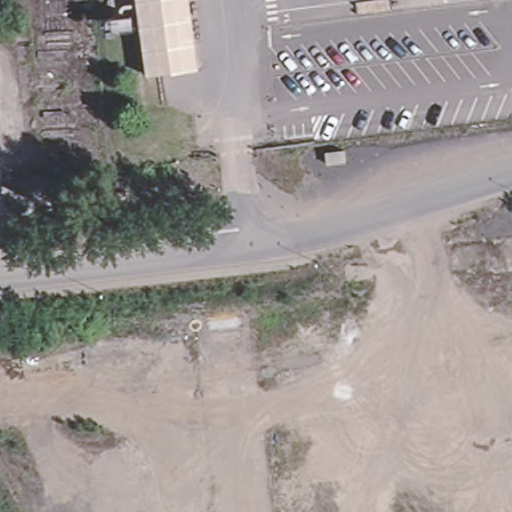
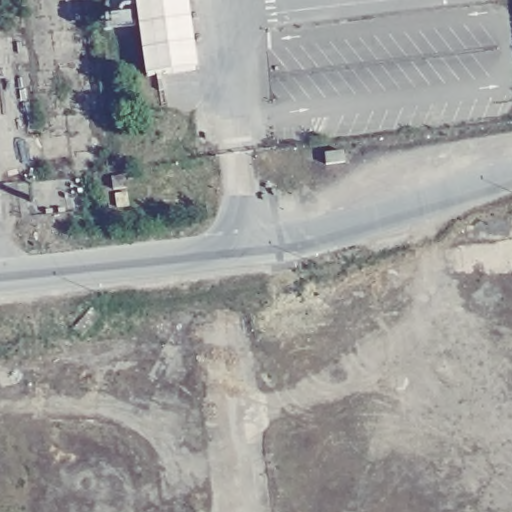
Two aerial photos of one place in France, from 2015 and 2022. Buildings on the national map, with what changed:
unchanged [(200,70),(146,78),(137,29),(107,33),(104,19),(134,13),(132,0),(189,0),(200,70)]
unchanged [(126,189),(114,190),(113,179),(125,178),(126,189)]

